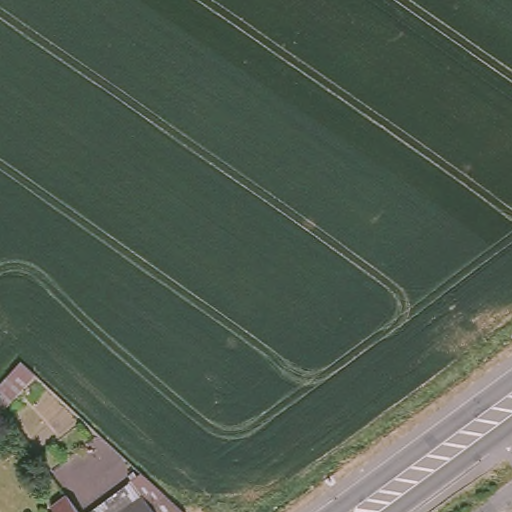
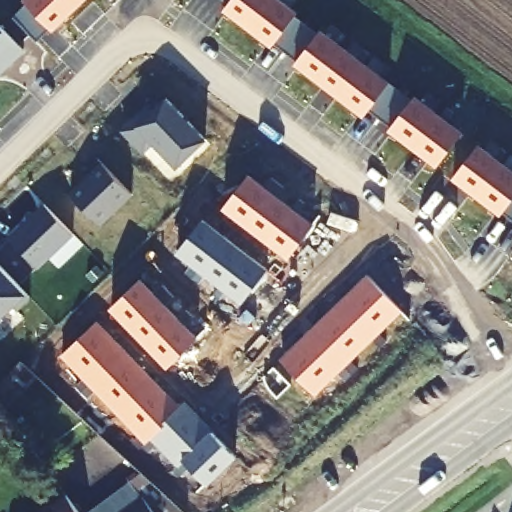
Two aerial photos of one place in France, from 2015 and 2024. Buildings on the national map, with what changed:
new [(27,2),(25,0),(86,0),(54,31),(50,27),(37,40),(13,16),(27,2)]
new [(299,11),(296,14),(319,31),(322,28),(390,81),(414,98),(415,95),(464,131),(437,166),(389,129),(392,124),(371,107),(364,116),(295,63),(299,58),(276,41),(272,47),(224,9),(230,1),(229,0),(285,0),(299,11)]
new [(0,75),(0,24),(25,50),(0,75)]
new [(154,143),(144,153),(120,130),(150,101),(155,107),(167,97),(208,138),(177,168),(154,143)]
new [(505,209),(500,215),(452,177),(480,142),(512,166),(512,215),(505,209)]
new [(70,192),(103,161),(134,194),(102,224),(70,192)]
new [(222,209),(250,173),(315,223),(289,258),(222,209)]
new [(7,237),(45,202),(75,234),(39,268),(7,237)]
new [(204,219),(269,268),(244,302),(177,252),(204,219)]
new [(30,298),(19,309),(15,304),(0,319),(0,264),(26,294),(30,298)]
new [(280,358),(367,274),(403,310),(316,395),(280,358)]
new [(142,278),(199,336),(167,368),(110,308),(142,278)]
new [(188,466),(184,472),(151,439),(146,443),(60,355),(98,320),(182,404),(185,400),(214,429),(212,430),(238,456),(207,484),(188,466)]
unchanged [(0,378),(10,367),(26,381),(0,408),(0,378)]
unchanged [(184,512),(83,512),(135,471),(184,512)]
unchanged [(50,506),(65,495),(78,512),(54,512),(55,512),(50,506)]

